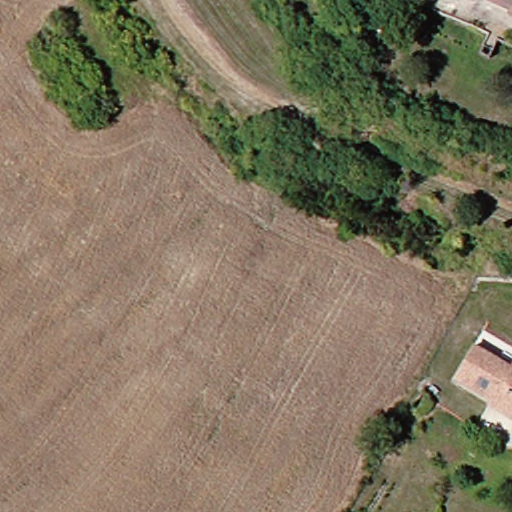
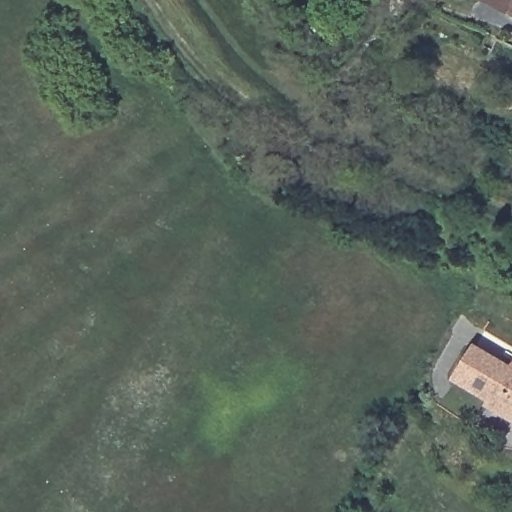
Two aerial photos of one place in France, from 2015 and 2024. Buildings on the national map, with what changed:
unchanged [(512,7),(496,0),(512,0),(512,7)]
unchanged [(512,355),(492,340),(499,331),(512,341),(512,355)]
unchanged [(495,410),(459,384),(479,357),(512,382),(512,429),(511,432),(491,416),(495,410)]

